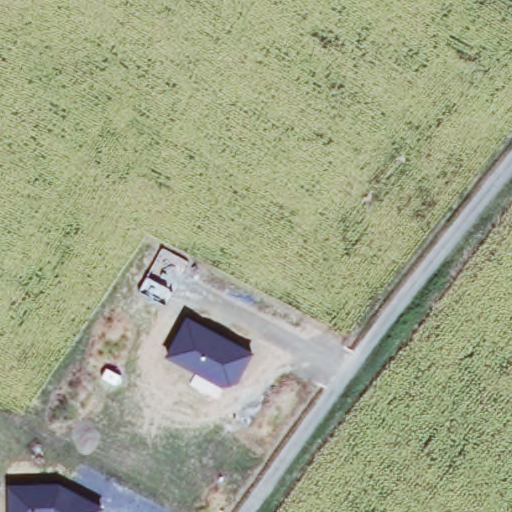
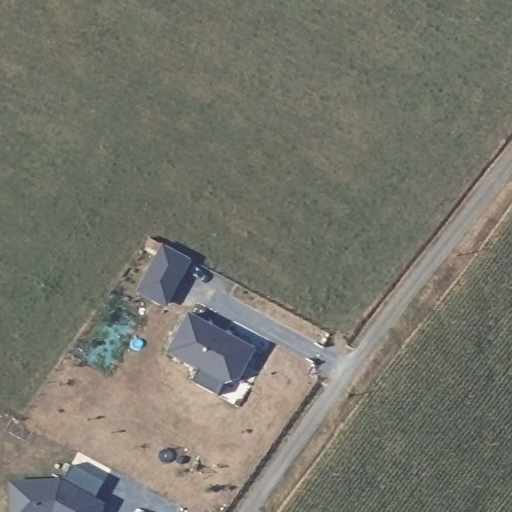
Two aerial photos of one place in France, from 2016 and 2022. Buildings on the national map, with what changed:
new [(139,292),(163,245),(192,260),(166,307),(139,292)]
unchanged [(187,314),(255,349),(240,380),(223,385),(165,354),(187,314)]
unchanged [(59,481),(106,505),(103,512),(10,512),(10,483),(59,481)]

